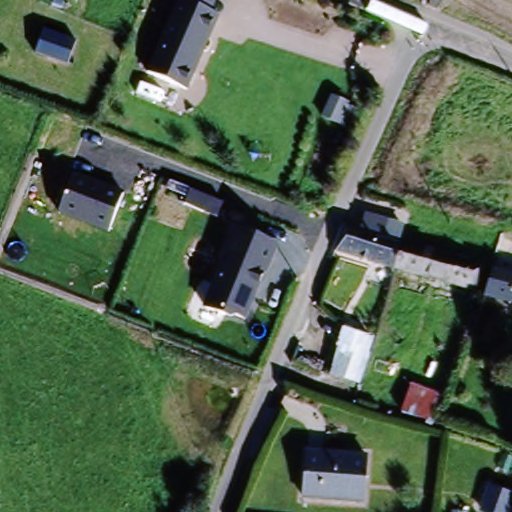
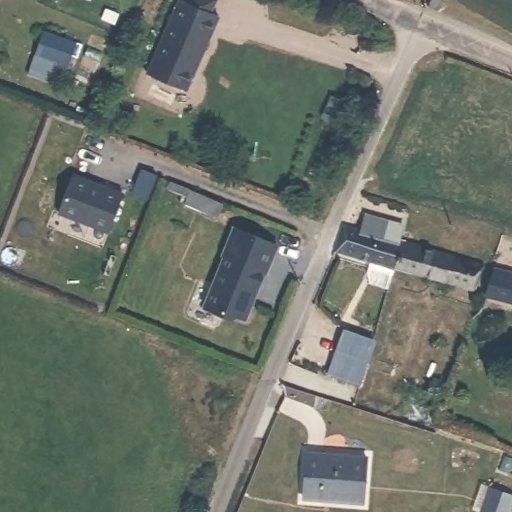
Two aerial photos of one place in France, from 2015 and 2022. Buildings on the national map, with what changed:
unchanged [(175,3),(184,5),(186,0),(214,0),(217,0),(212,14),(217,16),(190,89),(150,75),(175,3)]
unchanged [(59,214),(72,176),(122,192),(109,231),(59,214)]
unchanged [(360,216),(400,230),(397,243),(388,272),(330,254),(339,230),(355,234),(360,216)]
unchanged [(234,226),(274,242),(244,321),(202,310),(234,226)]
unchanged [(397,243),(479,268),(470,297),(388,272),(397,243)]
unchanged [(480,301),(489,270),(512,277),(512,309),(480,301)]
unchanged [(342,327),(375,335),(360,385),(330,375),(342,327)]
unchanged [(412,383),(441,393),(430,422),(402,412),(412,383)]
unchanged [(299,501),(302,452),(366,460),(362,506),(299,501)]
unchanged [(493,486),(505,491),(496,512),(487,512),(484,510),(493,486)]

